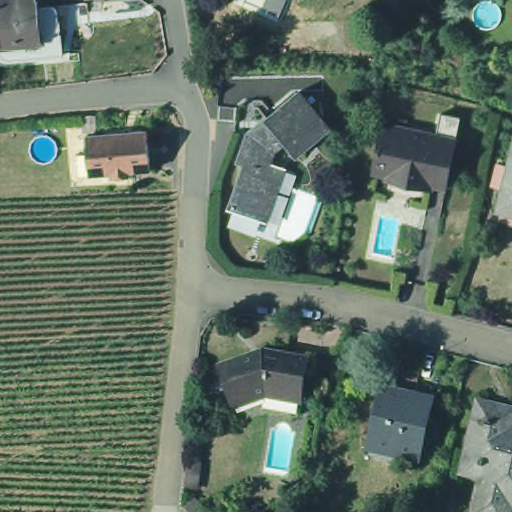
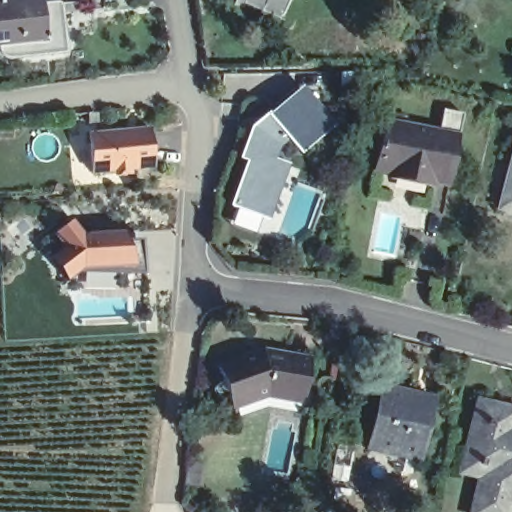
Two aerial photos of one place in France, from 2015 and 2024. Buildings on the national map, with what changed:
unchanged [(70,47),(10,53),(7,51),(5,48),(3,34),(0,20),(0,0),(64,0),(65,7),(70,47)]
new [(244,0),(289,0),(282,17),(244,0)]
unchanged [(3,34),(0,35),(0,15),(0,14),(3,34)]
unchanged [(300,142),(288,127),(277,135),(273,150),(287,155),(267,207),(233,193),(250,150),(242,147),(253,116),(305,79),(335,119),(300,142)]
unchanged [(434,185),(375,173),(384,124),(437,135),(442,112),(463,117),(453,167),(448,188),(434,185)]
unchanged [(150,123),(153,163),(131,165),(127,169),(118,170),(113,166),(93,168),(90,128),(150,123)]
unchanged [(502,203),(512,163),(512,206),(502,203)]
new [(146,276),(78,273),(70,281),(50,257),(63,246),(54,235),(72,219),(85,234),(124,233),(127,240),(143,240),(146,276)]
unchanged [(235,399),(232,393),(218,358),(252,346),(253,349),(262,346),(262,342),(312,350),(305,393),(268,387),(235,399)]
unchanged [(374,439),(376,432),(387,381),(400,383),(400,387),(413,390),(415,386),(436,391),(430,414),(425,413),(422,426),(427,429),(422,450),(400,445),(374,439)]
unchanged [(460,457),(473,396),(502,403),(512,405),(512,410),(509,423),(512,424),(512,501),(507,500),(505,512),(467,512),(477,474),(457,469),(460,457)]

